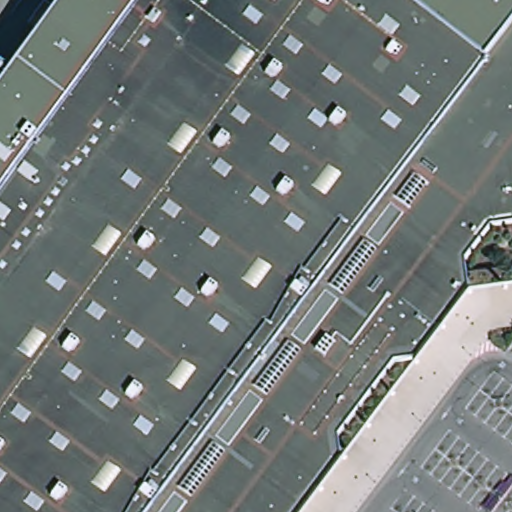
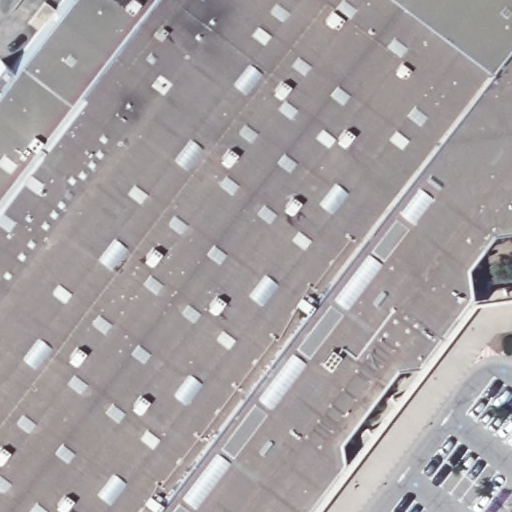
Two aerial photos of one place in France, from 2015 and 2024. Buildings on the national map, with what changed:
unchanged [(0,56),(10,62),(57,0),(512,0),(512,237),(482,241),(462,267),(464,296),(411,366),(390,369),(335,441),(337,462),(300,512),(0,512),(0,56)]

